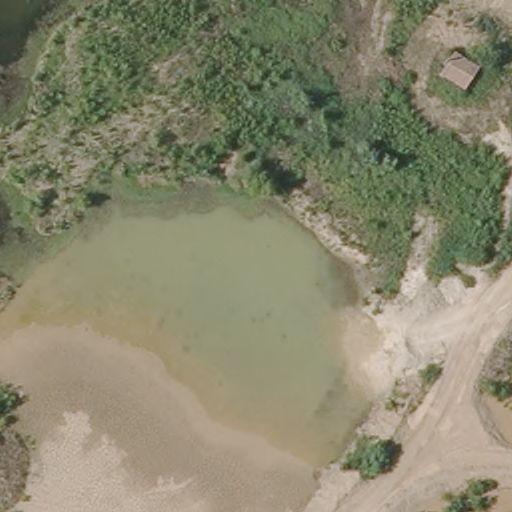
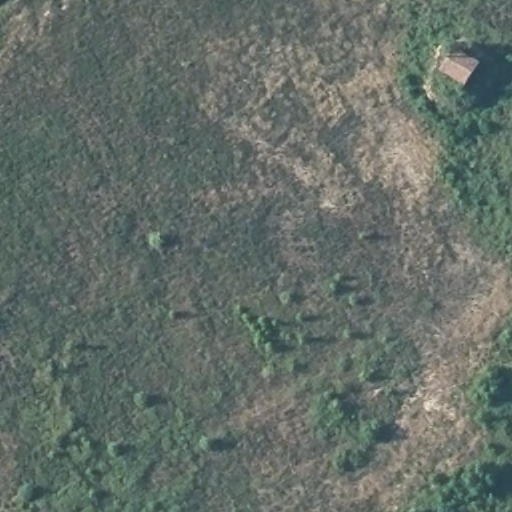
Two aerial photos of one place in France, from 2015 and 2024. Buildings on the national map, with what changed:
unchanged [(466,92),(441,76),(456,52),(480,67),(466,92)]

